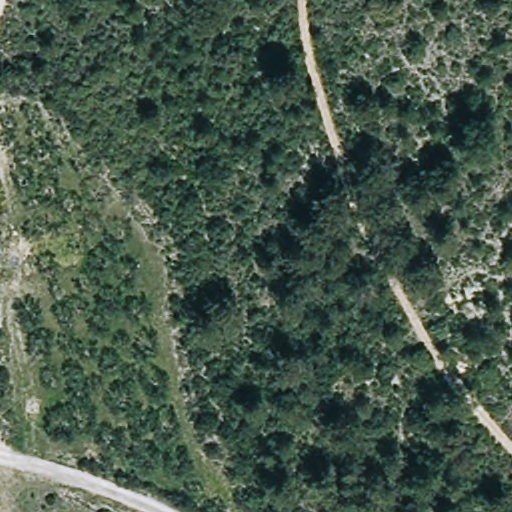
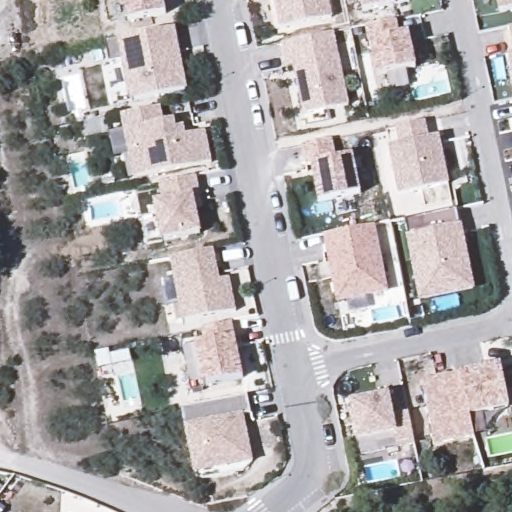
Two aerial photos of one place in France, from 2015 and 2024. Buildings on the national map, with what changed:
new [(128,22),(124,0),(161,0),(164,15),(128,22)]
new [(326,0),(329,20),(279,29),(274,0),(326,0)]
new [(359,0),(394,0),(395,6),(361,12),(359,0)]
new [(498,0),(512,0),(512,21),(503,22),(498,0)]
new [(174,27),(185,90),(129,102),(121,61),(107,64),(104,43),(174,27)]
new [(512,44),(508,28),(512,27),(512,44)]
new [(397,32),(400,46),(410,45),(417,80),(380,88),(373,53),(371,54),(368,37),(397,32)]
new [(512,41),(512,49),(510,41),(512,41)]
new [(512,53),(512,71),(508,54),(512,53)]
new [(338,57),(347,107),(302,116),(293,67),(338,57)]
new [(512,67),(512,83),(509,67),(512,67)]
new [(160,106),(163,121),(174,120),(176,129),(184,127),(187,135),(203,132),(208,165),(132,180),(119,115),(160,106)]
new [(398,150),(395,133),(422,127),(426,144),(436,142),(447,191),(398,201),(388,152),(398,150)]
new [(318,203),(311,165),(304,165),(301,145),(332,139),(336,159),(352,155),(360,195),(318,203)]
new [(195,176),(200,203),(195,204),(200,235),(162,243),(154,202),(160,201),(159,184),(195,176)]
new [(418,285),(406,225),(459,215),(462,231),(464,240),(475,295),(443,301),(423,305),(418,285)]
new [(323,235),(373,225),(385,294),(336,302),(323,235)]
new [(213,250),(219,281),(228,280),(234,313),(183,323),(170,259),(213,250)]
new [(204,348),(201,333),(230,328),(241,383),(202,391),(194,350),(204,348)]
new [(499,376),(507,416),(468,424),(459,383),(499,376)]
new [(459,383),(468,424),(472,445),(433,453),(420,391),(459,383)]
new [(388,395),(392,416),(407,412),(412,447),(395,451),(392,435),(356,441),(349,401),(388,395)]
new [(183,411),(246,396),(250,415),(243,416),(251,468),(197,480),(183,411)]

